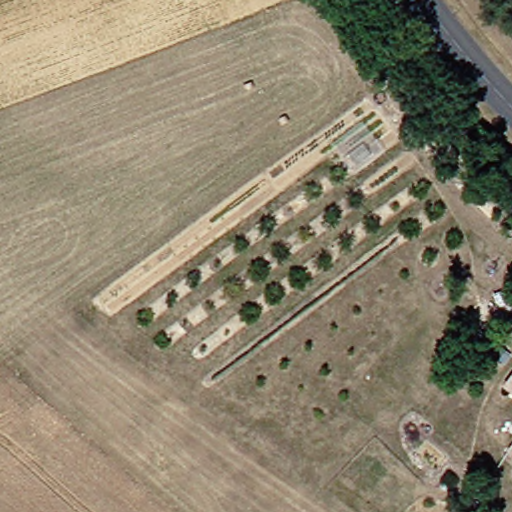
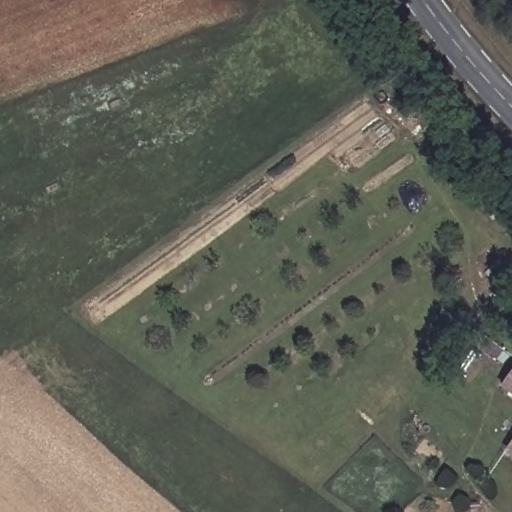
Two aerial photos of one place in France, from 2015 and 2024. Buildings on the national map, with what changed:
unchanged [(508,384),(512,378),(512,387),(508,384)]

